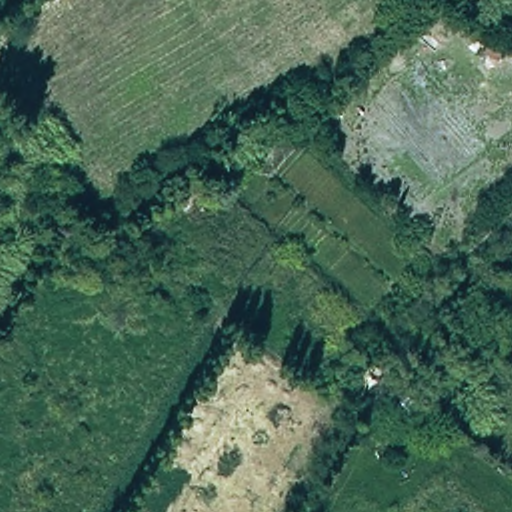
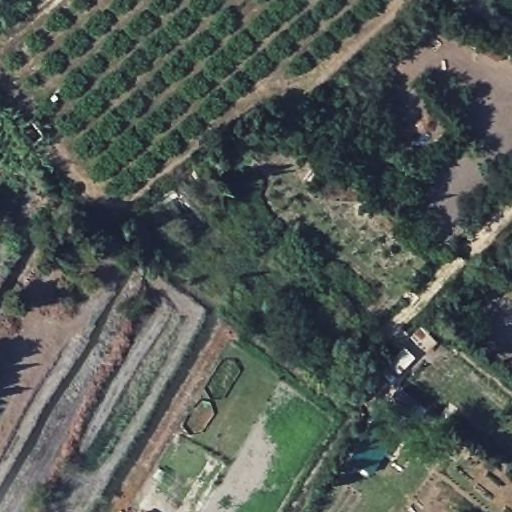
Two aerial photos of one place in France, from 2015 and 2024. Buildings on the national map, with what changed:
unchanged [(509,51),(500,64),(482,53),(491,39),(509,51)]
unchanged [(49,133),(35,146),(18,126),(32,113),(49,133)]

